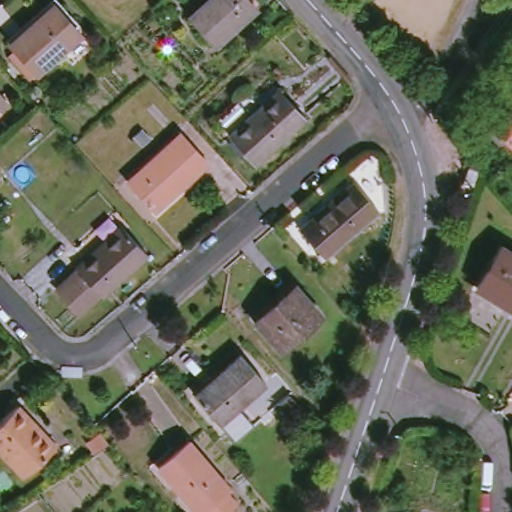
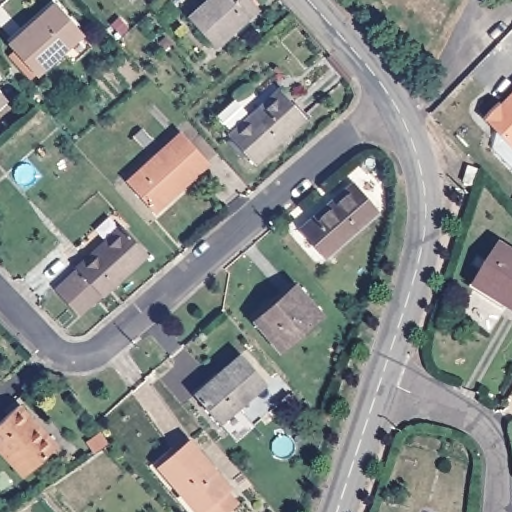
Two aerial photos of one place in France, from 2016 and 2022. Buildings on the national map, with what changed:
unchanged [(253,6),(210,43),(185,14),(201,0),(248,0),(253,6)]
unchanged [(79,37),(37,76),(10,46),(53,7),(79,37)]
unchanged [(223,131),(275,85),(299,113),(248,159),(223,131)]
unchanged [(0,105),(0,97),(4,101),(0,105)]
new [(487,124),(512,98),(512,147),(487,124)]
demolished [(512,99),(512,152),(481,121),(494,108),(499,114),(512,99)]
unchanged [(201,160),(146,209),(121,181),(176,133),(201,160)]
unchanged [(376,212),(323,259),(299,231),(353,184),(376,212)]
unchanged [(73,270),(119,228),(144,256),(98,297),(96,295),(76,315),(54,291),(75,273),(73,270)]
unchanged [(512,256),(512,312),(475,290),(499,248),(512,256)]
unchanged [(320,312),(280,347),(254,318),(293,283),(320,312)]
unchanged [(261,379),(215,421),(190,393),(236,351),(261,379)]
unchanged [(0,450),(0,417),(16,402),(53,443),(23,474),(0,450)]
unchanged [(196,508),(176,487),(174,489),(151,464),(181,437),(223,483),(221,486),(231,497),(213,512),(204,512),(198,505),(196,508)]

